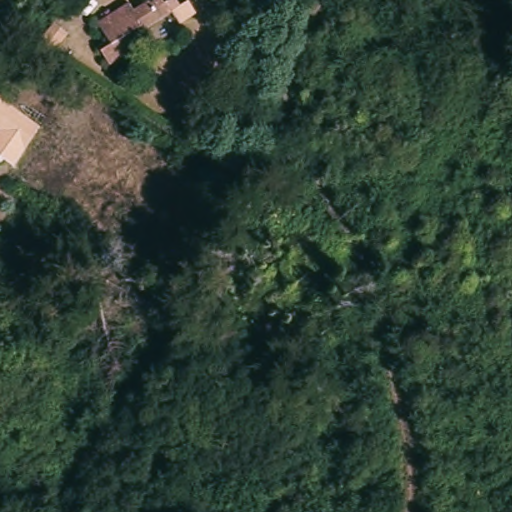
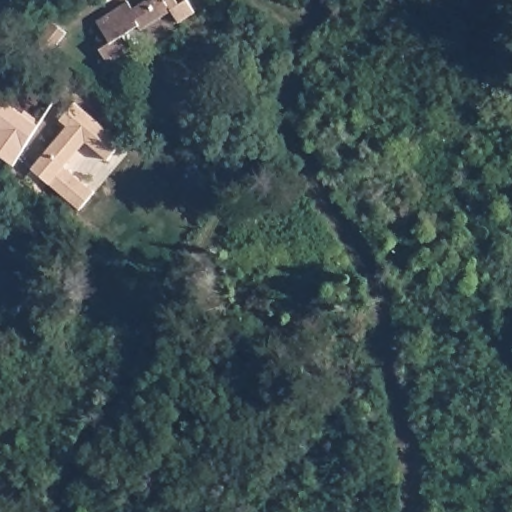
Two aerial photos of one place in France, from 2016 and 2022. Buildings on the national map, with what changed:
unchanged [(140,29),(138,25),(123,34),(132,49),(109,64),(100,49),(110,43),(96,20),(128,0),(133,8),(145,0),(165,0),(171,10),(140,29)]
unchanged [(51,19),(66,29),(50,53),(35,44),(51,19)]
unchanged [(0,156),(0,97),(38,125),(14,166),(0,156)]
new [(67,126),(60,120),(75,103),(122,143),(107,159),(85,141),(64,166),(94,192),(79,209),(31,169),(67,126)]

